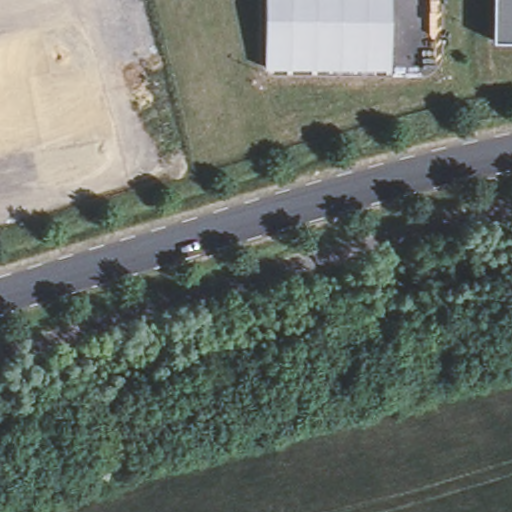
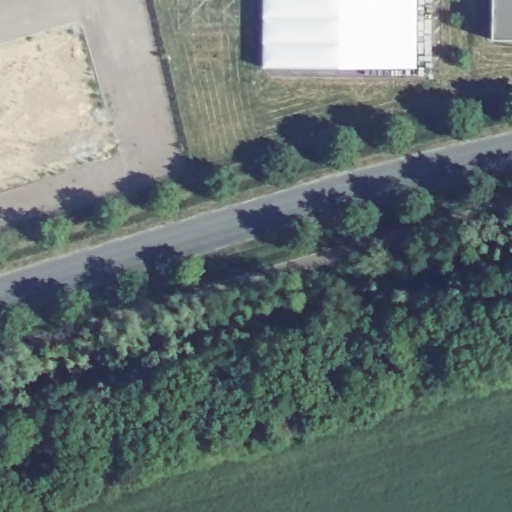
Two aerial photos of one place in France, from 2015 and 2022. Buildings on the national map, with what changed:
unchanged [(265,0),(391,0),(390,66),(265,65),(265,0)]
unchanged [(493,39),(494,0),(512,0),(512,40),(493,39)]

